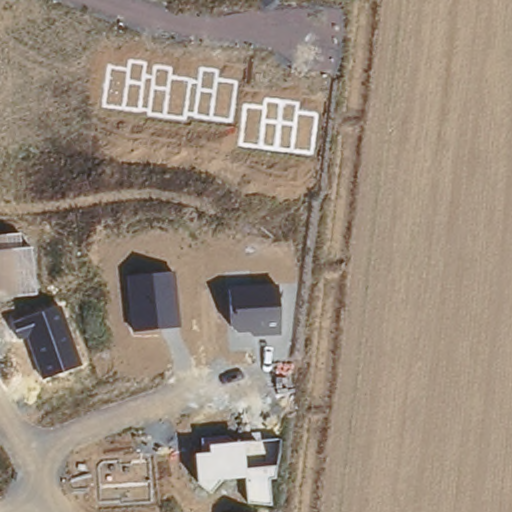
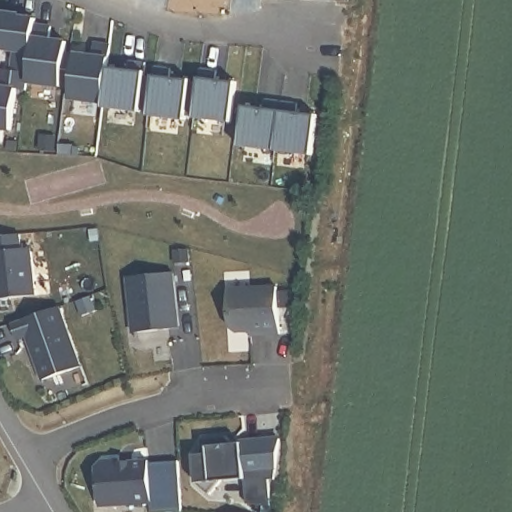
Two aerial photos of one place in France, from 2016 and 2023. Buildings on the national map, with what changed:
new [(11,71),(14,51),(0,49),(0,13),(19,15),(19,17),(34,19),(27,73),(11,71)]
new [(50,27),(49,39),(66,41),(60,86),(26,82),(33,25),(50,27)]
new [(93,43),(109,45),(101,102),(69,98),(74,53),(92,55),(93,43)]
new [(65,87),(60,86),(64,52),(69,52),(74,53),(70,88),(65,87)]
new [(126,68),(127,60),(145,62),(143,75),(151,76),(153,65),(170,67),(169,76),(189,78),(189,80),(197,81),(199,67),(216,69),(215,78),(235,80),(230,121),(193,116),(193,115),(185,114),(184,118),(147,114),(147,109),(139,108),(139,110),(101,105),(106,66),(126,68)]
new [(25,90),(19,89),(13,130),(0,128),(0,69),(11,71),(27,73),(25,90)]
new [(242,105),(263,108),(264,100),(297,104),(296,112),(316,115),(311,155),(237,145),(242,105)]
unchanged [(23,247),(33,247),(37,297),(0,301),(0,236),(21,234),(23,247)]
unchanged [(175,272),(181,328),(131,334),(125,278),(175,272)]
unchanged [(281,337),(250,338),(249,333),(237,333),(228,325),(226,288),(278,284),(281,337)]
unchanged [(83,367),(42,383),(26,337),(18,340),(12,323),(60,306),(83,367)]
unchanged [(277,480),(268,480),(271,505),(246,503),(244,479),(219,482),(208,494),(196,482),(193,453),(200,453),(199,439),(227,436),(228,443),(280,437),(277,480)]
unchanged [(153,502),(119,505),(118,501),(98,502),(97,468),(102,461),(151,456),(153,502)]

